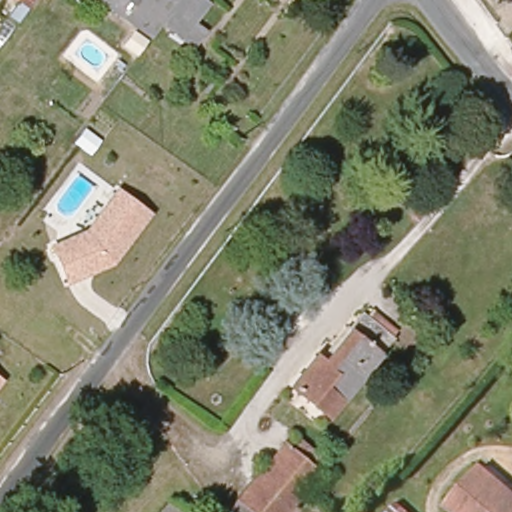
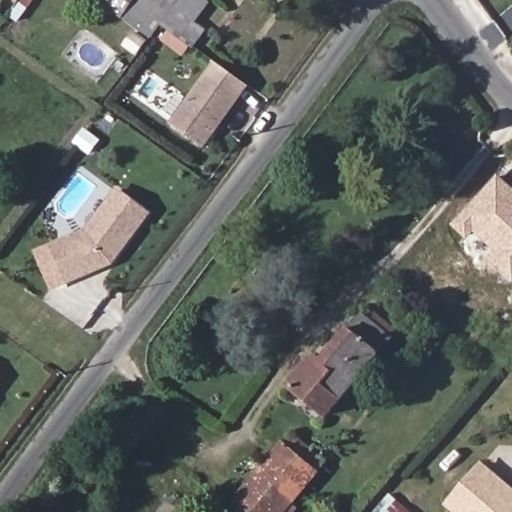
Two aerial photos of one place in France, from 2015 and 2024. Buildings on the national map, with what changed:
unchanged [(21,0),(26,0),(24,2),(21,0)]
unchanged [(201,49),(180,36),(159,64),(144,53),(156,36),(98,0),(206,0),(224,12),(201,49)]
new [(205,150),(169,124),(213,61),(249,87),(205,150)]
new [(512,187),(512,281),(488,258),(494,252),(476,233),(469,240),(453,226),(499,175),(512,187)]
unchanged [(85,229),(115,190),(148,216),(113,265),(66,284),(49,244),(85,229)]
unchanged [(324,414),(288,380),(315,348),(320,354),(363,308),(394,335),(324,414)]
unchanged [(288,512),(230,512),(239,500),(287,441),(325,473),(288,512)]
unchanged [(453,502),(485,465),(512,488),(512,512),(464,512),(453,502)]
unchanged [(169,498),(184,512),(157,512),(169,498)]

